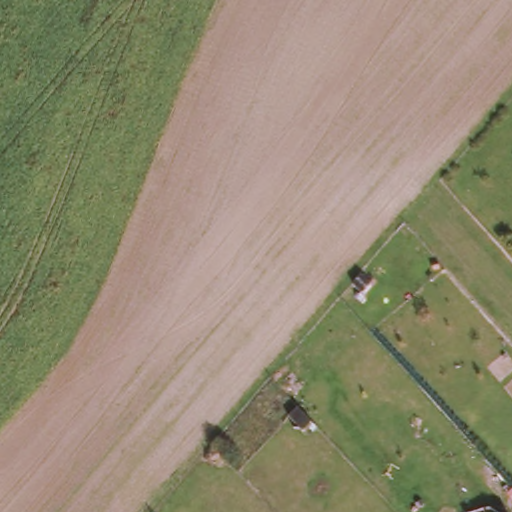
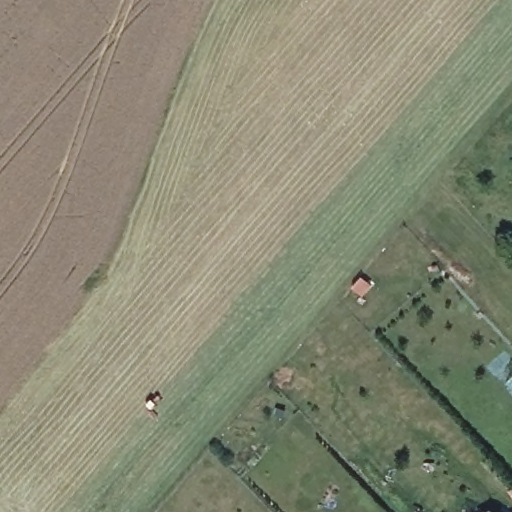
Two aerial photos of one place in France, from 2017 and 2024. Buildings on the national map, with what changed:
unchanged [(506,493),(512,488),(512,499),(506,493)]

